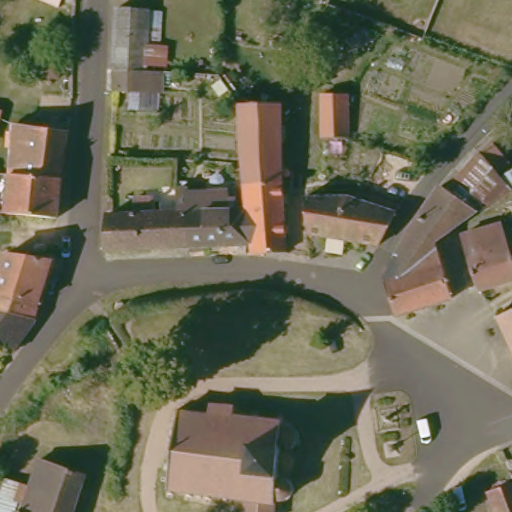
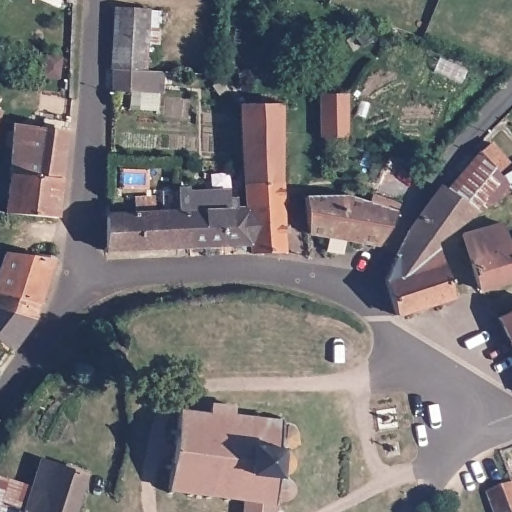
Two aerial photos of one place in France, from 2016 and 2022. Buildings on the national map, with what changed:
unchanged [(60,2),(54,0),(60,0),(60,2)]
unchanged [(138,65),(106,64),(107,44),(108,11),(142,12),(138,65)]
unchanged [(154,87),(105,85),(106,64),(138,65),(155,65),(154,87)]
unchanged [(347,92),(345,136),(312,135),(315,91),(347,92)]
unchanged [(0,109),(1,109),(0,112),(0,109)]
unchanged [(278,111),(273,208),(273,239),(273,255),(240,255),(240,244),(239,215),(239,170),(238,110),(278,111)]
unchanged [(11,168),(13,145),(7,144),(8,130),(14,130),(15,122),(65,127),(62,173),(11,168)]
unchanged [(442,296),(385,312),(375,277),(382,259),(397,235),(412,214),(434,186),(440,191),(478,155),(493,151),(500,160),(502,163),(489,170),(495,180),(512,169),(512,186),(427,241),(442,296)]
unchanged [(7,211),(11,168),(62,173),(59,216),(7,211)]
unchanged [(178,216),(168,216),(168,193),(174,193),(185,193),(185,198),(227,197),(227,207),(234,207),(234,215),(178,216)]
unchanged [(373,242),(302,235),(302,194),(332,193),(352,197),(365,202),(370,195),(395,205),(373,242)]
unchanged [(97,254),(98,217),(127,216),(127,201),(140,201),(140,206),(146,206),(146,216),(168,216),(178,216),(178,248),(97,254)]
unchanged [(240,244),(178,248),(178,216),(234,215),(239,215),(240,244)]
unchanged [(495,220),(498,226),(512,223),(512,275),(470,287),(453,231),(495,220)]
unchanged [(0,308),(0,291),(0,252),(51,258),(42,300),(40,305),(33,315),(9,347),(0,344),(0,308)]
unchanged [(492,318),(512,310),(512,364),(492,318)]
unchanged [(220,495),(211,494),(207,498),(202,497),(202,492),(190,491),(188,496),(185,495),(185,490),(167,488),(167,493),(163,492),(167,466),(160,465),(162,461),(167,461),(171,430),(166,428),(167,422),(172,423),(175,403),(178,403),(180,409),(203,411),(204,402),(228,405),(227,413),(246,415),(247,410),(251,410),(250,416),(273,418),(274,412),(278,413),(277,424),(287,429),(290,433),(289,440),(284,443),(277,444),(277,449),(283,455),(285,460),(283,466),(277,469),(273,470),(272,477),(279,484),(281,488),(280,496),(275,500),(267,500),(266,512),(219,512),(220,500),(220,495)]
unchanged [(25,491),(33,457),(82,474),(69,505),(66,512),(0,512),(0,482),(25,491)]
unchanged [(489,512),(481,489),(506,480),(512,497),(512,512),(489,512)]

